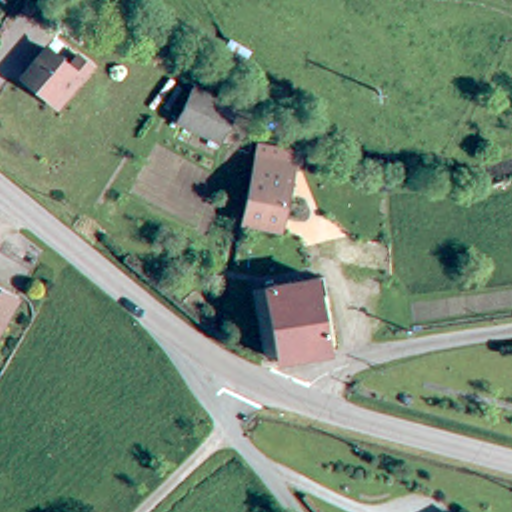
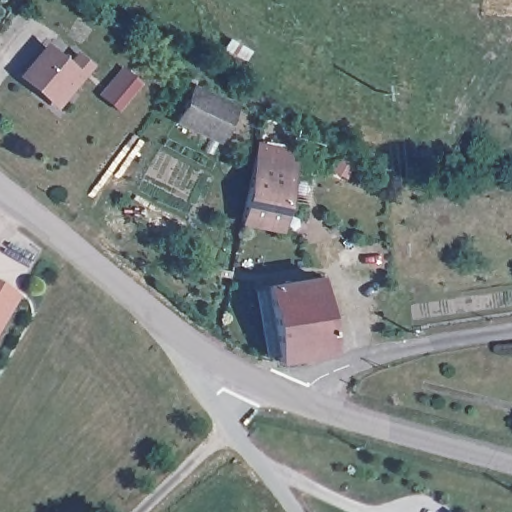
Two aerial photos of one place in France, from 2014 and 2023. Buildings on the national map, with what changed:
unchanged [(45,103),(18,80),(40,53),(63,71),(72,60),(85,69),(66,93),(54,109),(45,103)]
unchanged [(205,91),(237,109),(219,143),(185,125),(205,91)]
unchanged [(247,219),(255,188),(262,151),(282,157),(300,161),(293,194),(285,226),(247,219)]
unchanged [(332,282),(341,353),(335,355),(305,360),(295,286),(325,282),(332,282)]
unchanged [(280,363),(280,355),(265,356),(257,292),(265,291),(295,286),(305,360),(280,363)]
unchanged [(20,301),(0,339),(0,290),(20,301)]

